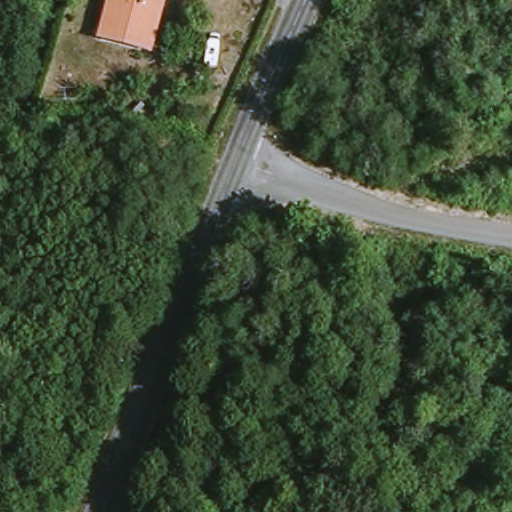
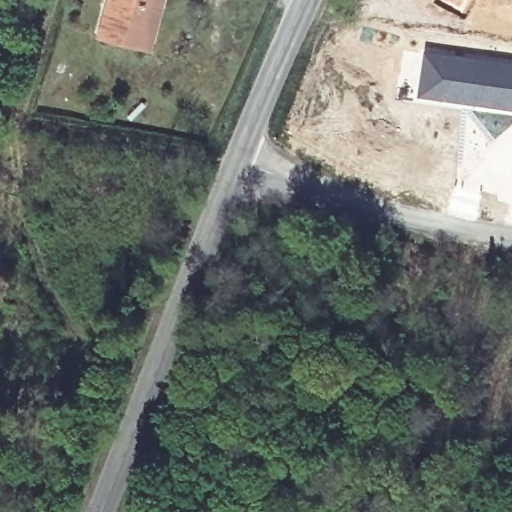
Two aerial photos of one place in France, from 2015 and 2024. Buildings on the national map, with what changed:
unchanged [(117,37),(126,0),(175,0),(173,7),(163,49),(151,46),(117,37)]
new [(512,60),(512,110),(417,97),(425,48),(512,60)]

